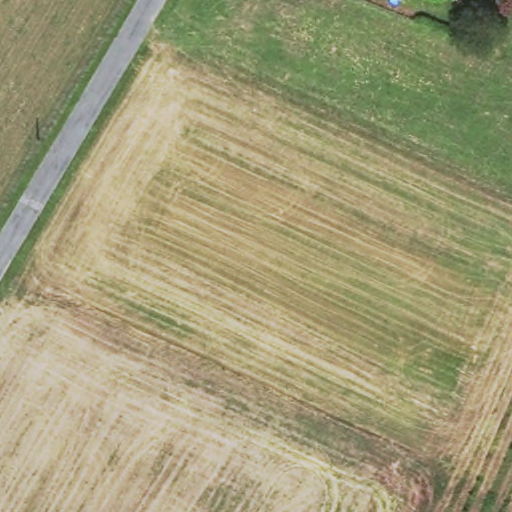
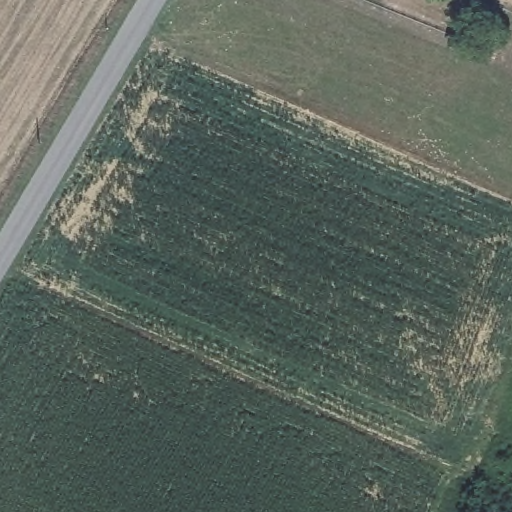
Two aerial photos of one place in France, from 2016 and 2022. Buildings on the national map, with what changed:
[]

